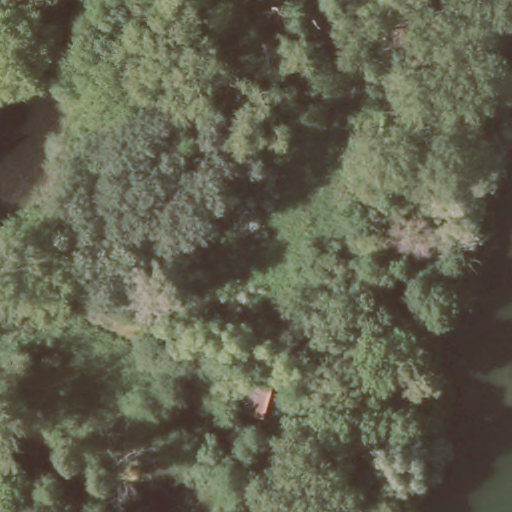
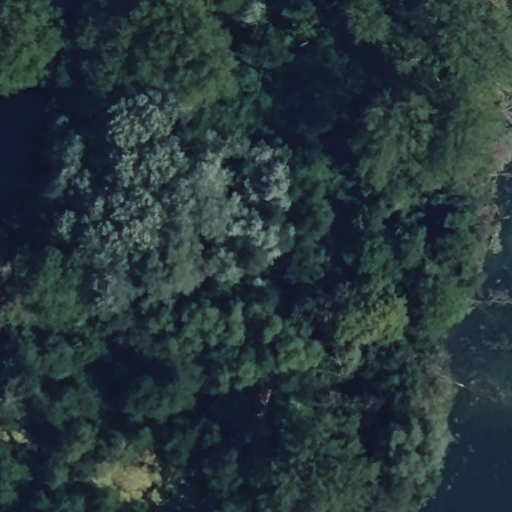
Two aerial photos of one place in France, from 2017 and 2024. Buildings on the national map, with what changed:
unchanged [(263,382),(276,390),(265,426),(252,420),(226,411),(240,373),(263,382)]

